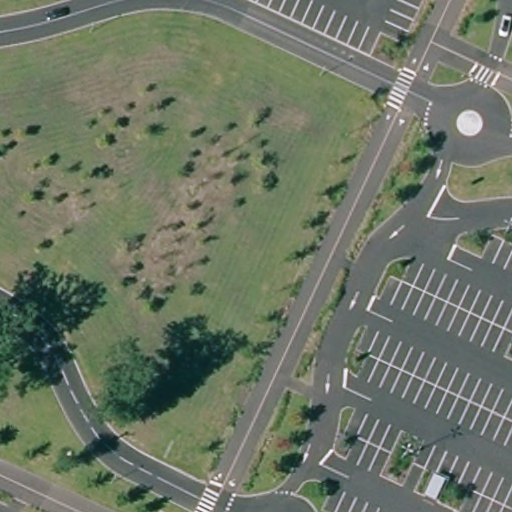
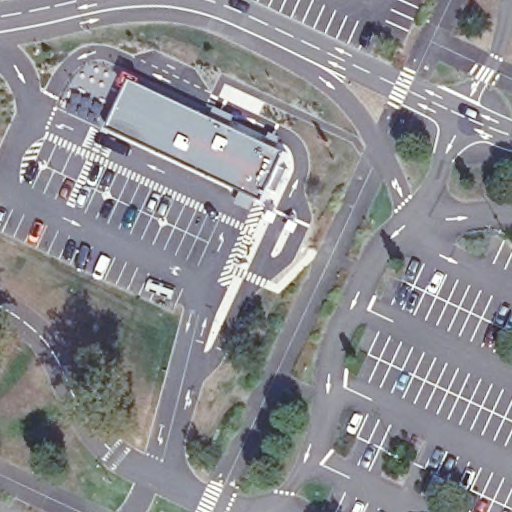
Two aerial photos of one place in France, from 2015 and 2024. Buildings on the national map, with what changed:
new [(133,79),(212,115),(216,108),(237,117),(235,121),(258,132),(290,152),(267,203),(193,171),(110,129),(133,79)]

